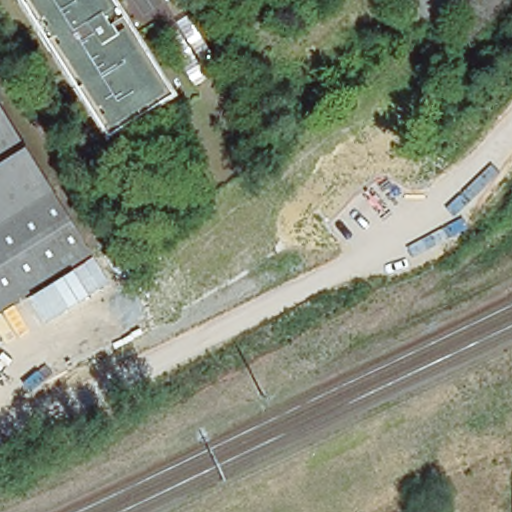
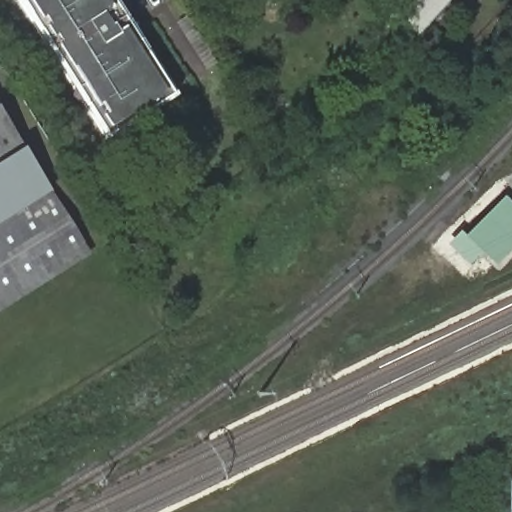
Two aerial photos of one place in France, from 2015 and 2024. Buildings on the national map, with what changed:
unchanged [(104,141),(16,0),(115,0),(175,96),(104,141)]
unchanged [(456,0),(423,38),(405,10),(414,0),(456,0)]
unchanged [(162,43),(178,32),(174,25),(190,14),(224,71),(192,90),(162,43)]
unchanged [(0,212),(0,108),(47,182),(0,212)]
unchanged [(93,255),(0,313),(0,212),(47,182),(93,255)]
new [(505,198),(512,205),(512,251),(498,264),(470,235),(505,198)]

